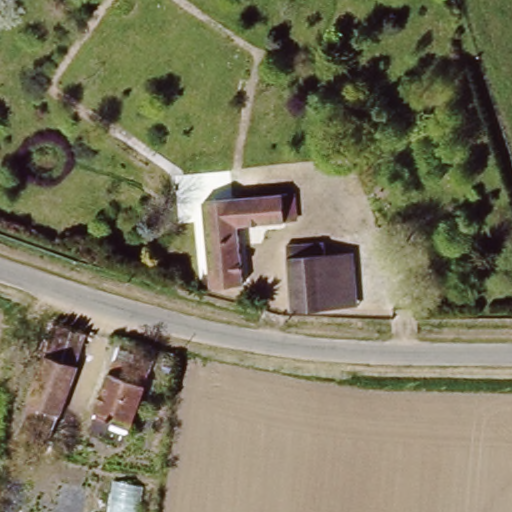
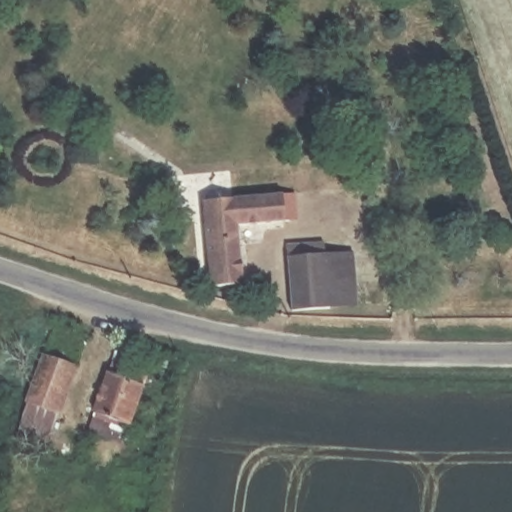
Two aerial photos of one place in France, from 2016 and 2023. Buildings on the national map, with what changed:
unchanged [(201,194),(290,185),(293,216),(235,221),(240,280),(236,281),(237,290),(221,292),(220,282),(209,283),(201,194)]
unchanged [(299,313),(292,243),(330,240),(337,310),(299,313)]
unchanged [(25,400),(31,383),(51,336),(81,349),(62,396),(55,413),(25,400)]
unchanged [(140,389),(125,439),(92,429),(107,379),(140,389)]

